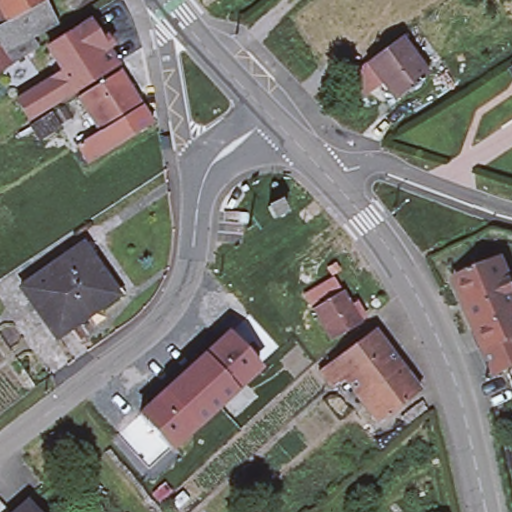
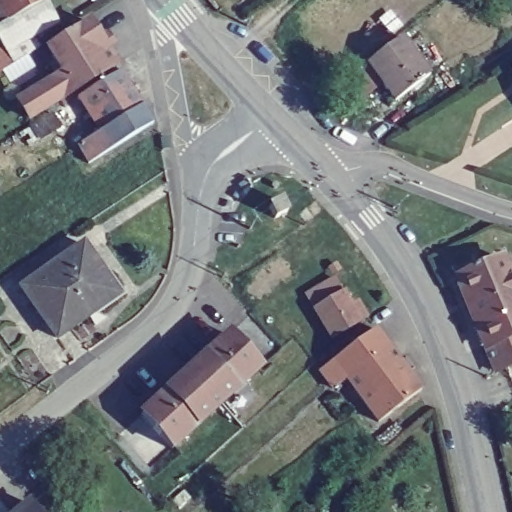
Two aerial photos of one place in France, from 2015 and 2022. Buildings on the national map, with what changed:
unchanged [(0,19),(0,0),(33,0),(0,19)]
unchanged [(53,17),(27,33),(33,43),(8,59),(0,64),(0,19),(33,0),(43,0),(53,17)]
unchanged [(43,52),(84,26),(95,44),(101,40),(106,49),(101,52),(111,69),(43,111),(25,122),(14,104),(31,93),(58,76),(43,52)]
unchanged [(429,76),(395,102),(366,63),(399,38),(429,76)]
unchanged [(75,100),(115,75),(138,110),(138,112),(148,127),(83,167),(74,151),(73,149),(96,135),(75,100)]
unchanged [(118,294),(56,338),(21,289),(83,245),(118,294)]
unchanged [(486,363),(482,353),(480,348),(472,328),(451,279),(496,259),(512,296),(512,362),(489,371),(486,363)]
unchanged [(358,317),(329,335),(311,304),(340,287),(358,317)]
unchanged [(351,346),(373,329),(386,347),(344,379),(331,389),(319,372),(318,370),(351,346)]
unchanged [(141,412),(181,377),(189,369),(229,333),(260,367),(245,381),(222,401),(210,412),(187,433),(172,447),(141,412)]
unchanged [(386,347),(405,372),(363,403),(344,379),(386,347)]
unchanged [(419,390),(377,422),(363,403),(405,372),(419,390)]
unchanged [(37,512),(17,512),(29,502),(37,512)]

